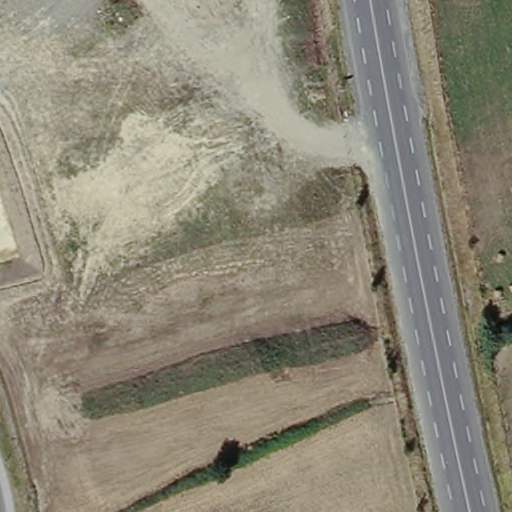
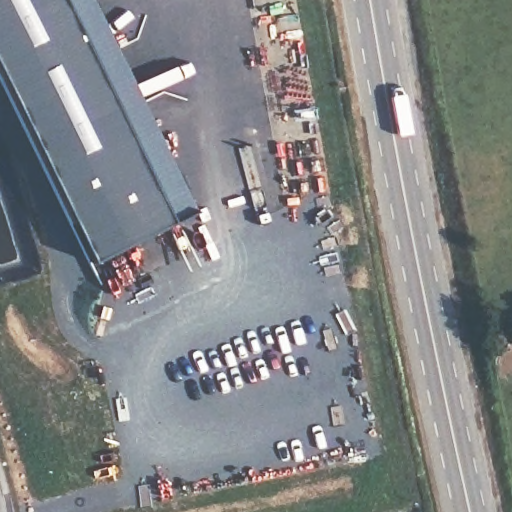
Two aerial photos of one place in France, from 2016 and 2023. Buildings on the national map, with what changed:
new [(170,221),(89,261),(0,81),(0,0),(62,0),(170,221)]
new [(193,209),(170,221),(62,0),(90,0),(193,209)]

